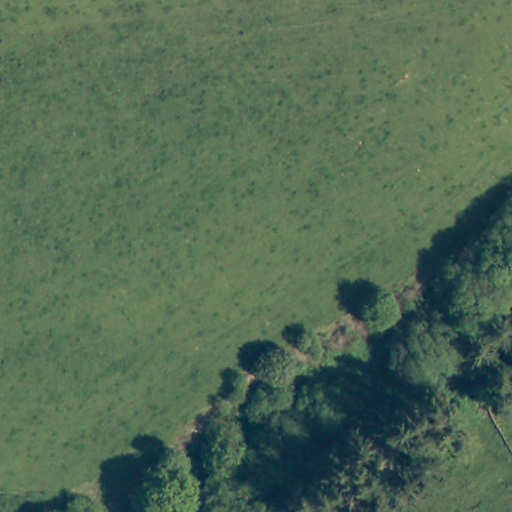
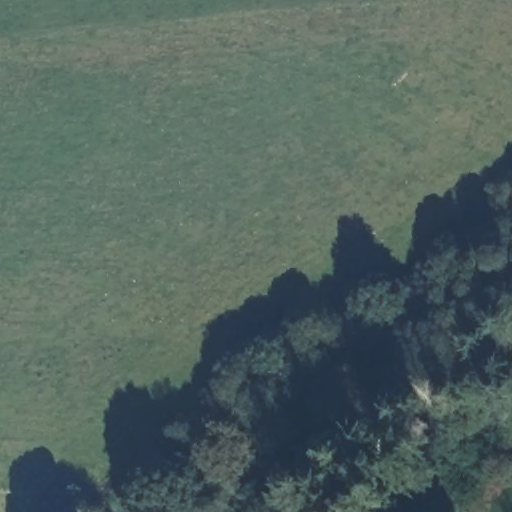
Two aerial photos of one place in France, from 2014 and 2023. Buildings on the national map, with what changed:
[]

